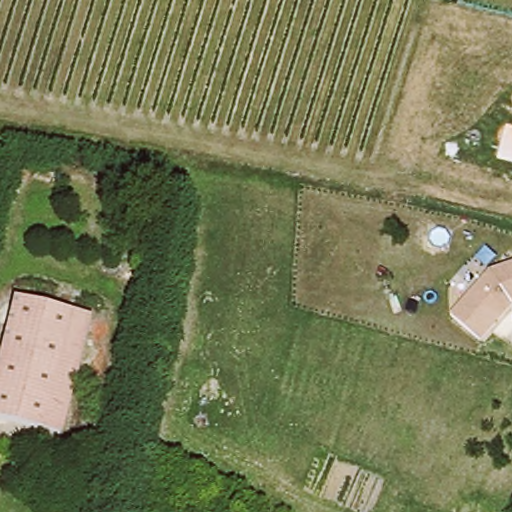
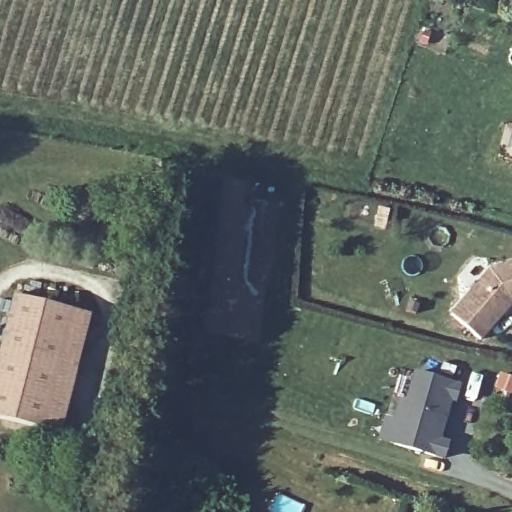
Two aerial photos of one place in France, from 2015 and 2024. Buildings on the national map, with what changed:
unchanged [(492,269),(512,262),(512,308),(483,342),(453,316),(492,269)]
unchanged [(0,393),(23,298),(78,312),(50,429),(0,417),(0,393)]
new [(393,422),(397,405),(405,401),(413,372),(458,385),(454,401),(449,400),(439,440),(448,442),(444,458),(393,446),(379,442),(384,420),(393,422)]

